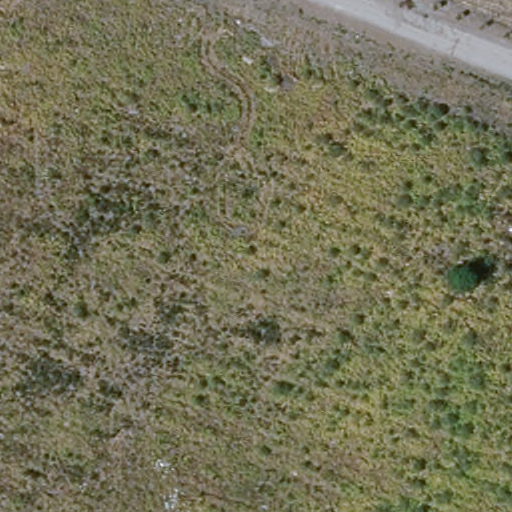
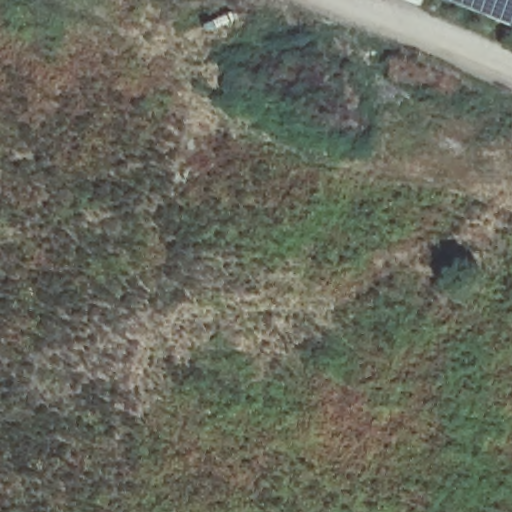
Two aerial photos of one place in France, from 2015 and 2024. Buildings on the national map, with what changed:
new [(452,0),(512,0),(512,24),(452,0)]

